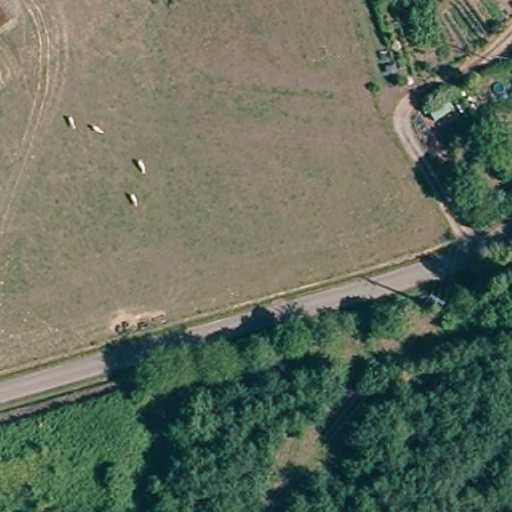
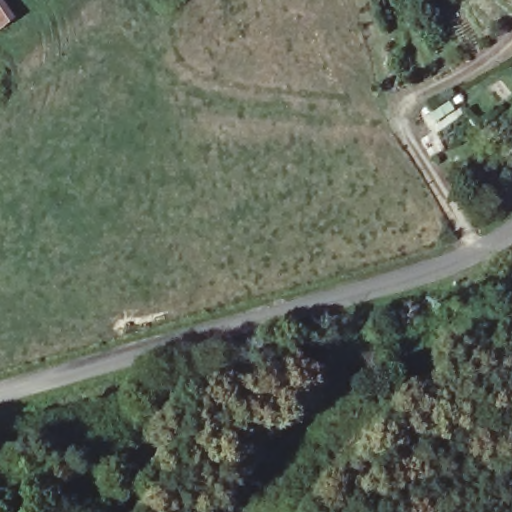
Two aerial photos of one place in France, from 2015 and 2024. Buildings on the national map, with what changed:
unchanged [(0,27),(0,0),(14,19),(0,27)]

